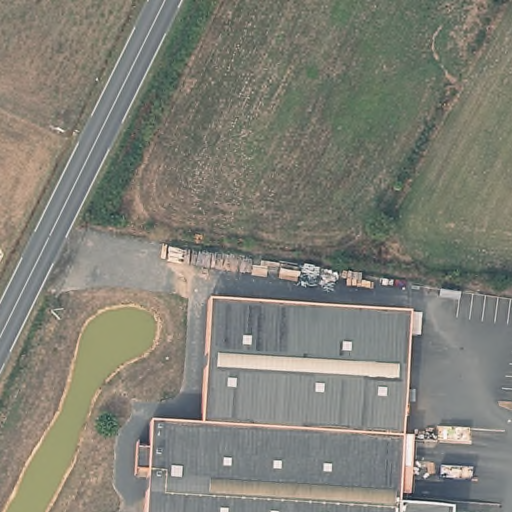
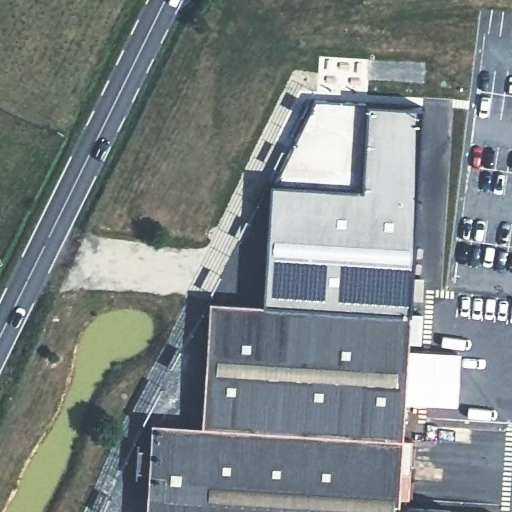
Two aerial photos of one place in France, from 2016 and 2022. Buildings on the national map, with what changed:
new [(314,98),(363,102),(421,106),(405,319),(261,309),(267,183),(314,98)]
unchanged [(405,319),(397,438),(195,429),(204,305),(405,319)]
unchanged [(145,426),(195,429),(397,438),(392,512),(137,512),(145,426)]

